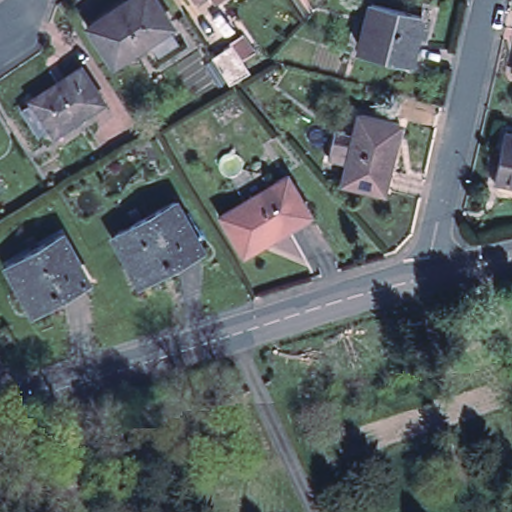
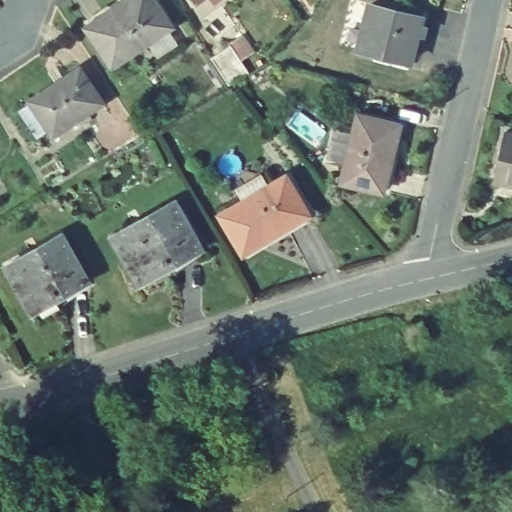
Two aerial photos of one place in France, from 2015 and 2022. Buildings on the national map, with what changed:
unchanged [(154,50),(145,35),(110,57),(88,20),(118,0),(156,0),(169,20),(165,22),(175,37),(154,50)]
unchanged [(420,16),(407,62),(360,49),(372,2),(420,16)]
unchanged [(210,59),(229,47),(227,44),(240,36),(252,54),(242,61),(250,75),(236,83),(228,87),(210,59)]
unchanged [(20,113),(32,106),(30,104),(80,69),(103,104),(90,112),(94,119),(82,129),(77,122),(53,137),(48,131),(37,138),(20,113)]
unchanged [(512,70),(512,76),(510,76),(512,70)]
unchanged [(398,124),(380,192),(340,181),(357,113),(398,124)]
unchanged [(512,186),(493,182),(504,133),(512,135),(512,186)]
unchanged [(220,217),(287,177),(308,215),(242,254),(220,217)]
unchanged [(172,205),(200,252),(173,268),(170,262),(137,282),(112,240),(172,205)]
unchanged [(59,235),(87,282),(62,296),(60,291),(30,307),(5,266),(59,235)]
unchanged [(415,327),(420,343),(403,348),(398,331),(415,327)]

